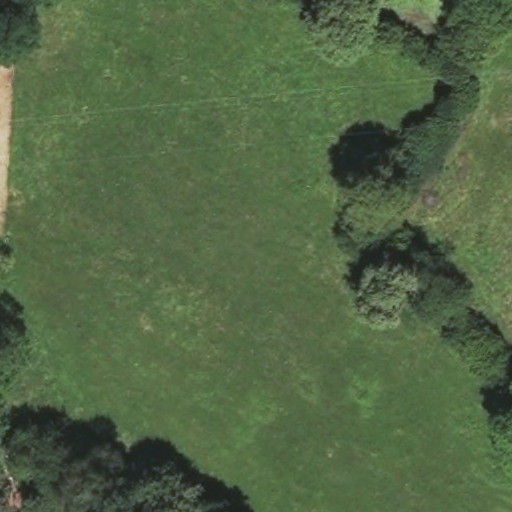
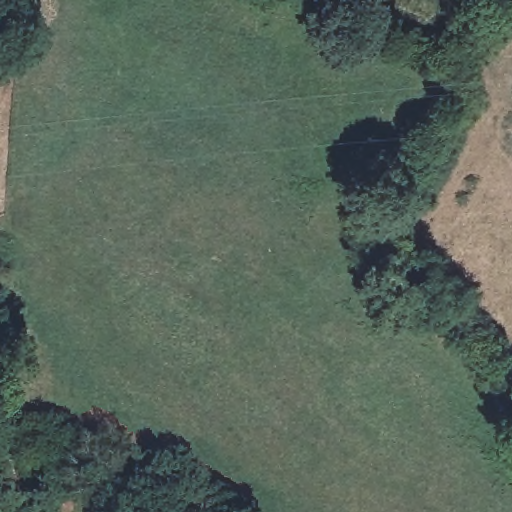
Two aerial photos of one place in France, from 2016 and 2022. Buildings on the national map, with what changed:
unchanged [(54,492),(45,512),(0,512),(0,440),(2,435),(56,457),(46,489),(54,492)]

